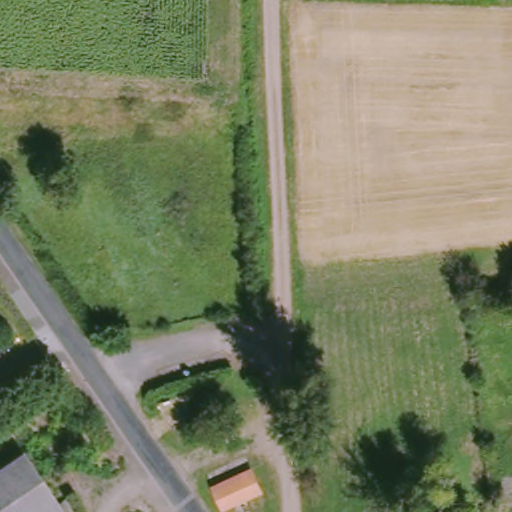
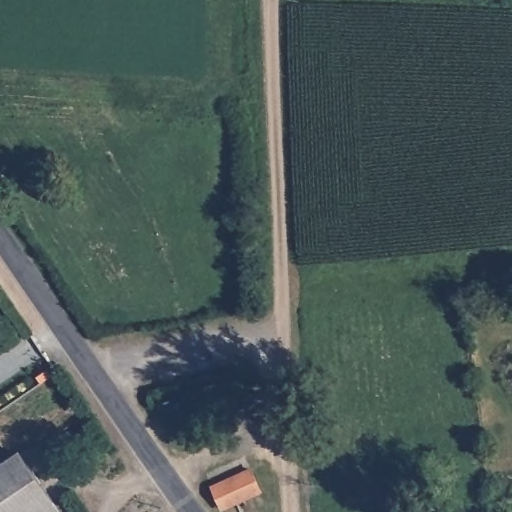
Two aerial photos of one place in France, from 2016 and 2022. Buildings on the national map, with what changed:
unchanged [(64,512),(0,512),(0,466),(22,451),(64,512)]
unchanged [(254,468),(265,492),(225,510),(214,486),(254,468)]

